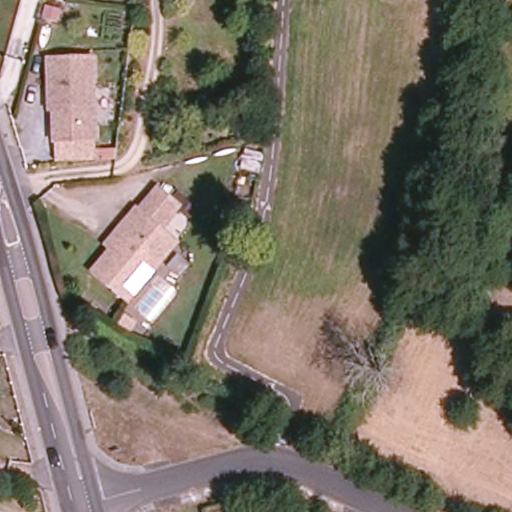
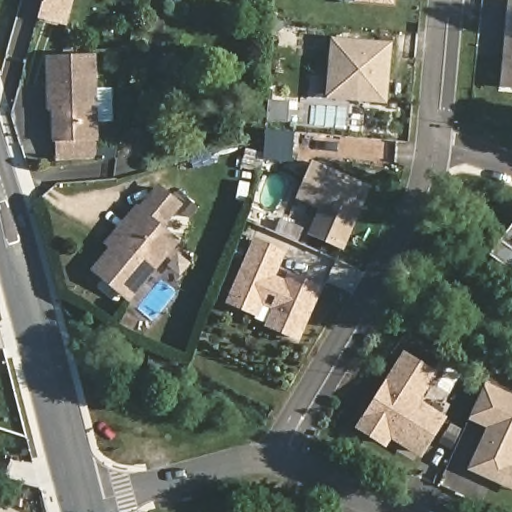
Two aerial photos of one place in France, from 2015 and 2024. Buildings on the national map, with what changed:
new [(37,19),(41,3),(44,0),(74,0),(67,27),(37,19)]
new [(353,2),(353,0),(394,0),(393,6),(353,2)]
new [(501,90),(509,0),(512,0),(512,90),(501,90)]
new [(386,104),(325,100),(330,38),(392,42),(386,104)]
unchanged [(52,59),(96,58),(97,96),(52,92),(52,59)]
unchanged [(98,143),(58,145),(57,112),(53,112),(52,100),(52,92),(97,96),(98,143)]
new [(294,199),(311,160),(371,186),(343,250),(307,235),(318,209),(294,199)]
unchanged [(176,207),(157,230),(175,245),(126,304),(91,275),(110,251),(104,246),(132,212),(136,216),(157,190),(176,207)]
new [(512,228),(512,266),(493,253),(512,228)]
new [(299,342),(264,327),(271,310),(261,305),(257,318),(225,304),(252,237),(286,250),(276,276),(285,278),(287,272),(323,286),(299,342)]
new [(420,400),(446,416),(421,458),(392,440),(387,450),(356,428),(404,352),(438,372),(420,400)]
demolished [(409,367),(416,352),(420,354),(457,370),(450,385),(411,367),(409,367)]
new [(470,467),(490,426),(470,417),(485,386),(512,398),(512,487),(470,467)]

